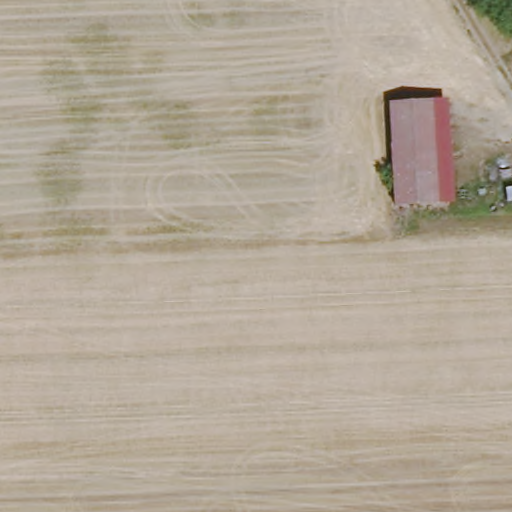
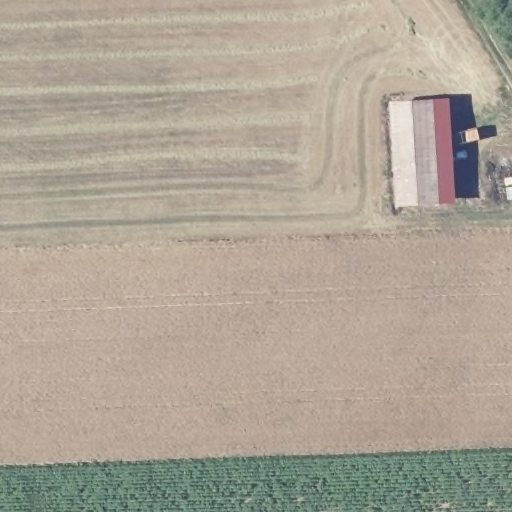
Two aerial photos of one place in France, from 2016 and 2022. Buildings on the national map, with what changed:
unchanged [(440,202),(397,205),(392,104),(435,102),(440,202)]

